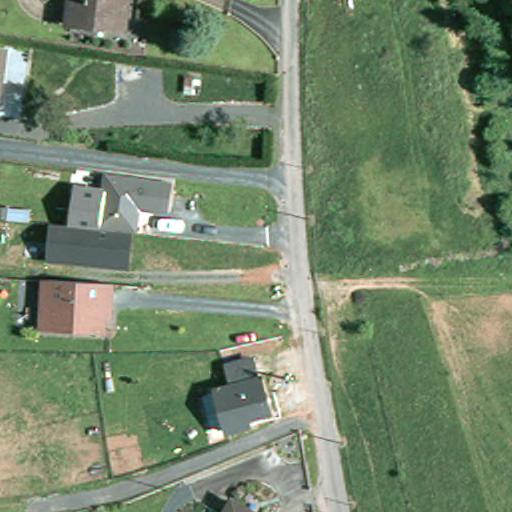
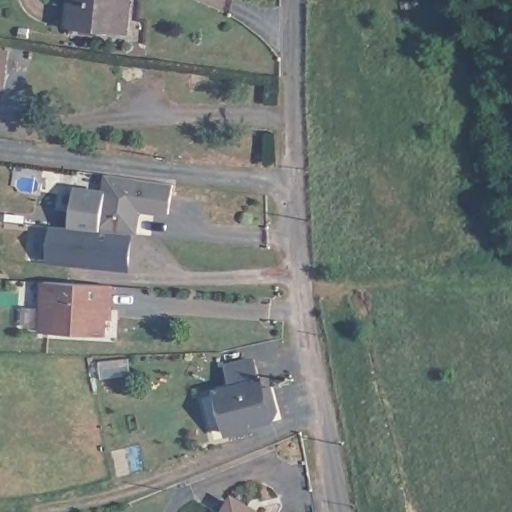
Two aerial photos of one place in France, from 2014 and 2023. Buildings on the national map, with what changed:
unchanged [(124,32),(71,24),(74,0),(129,0),(124,32)]
unchanged [(2,100),(1,108),(0,108),(0,52),(10,54),(2,100)]
unchanged [(102,170),(173,178),(170,218),(143,216),(139,234),(95,226),(102,170)]
unchanged [(98,203),(95,226),(132,232),(128,268),(46,257),(49,220),(68,223),(74,185),(100,186),(98,203)]
unchanged [(114,280),(110,336),(38,329),(41,276),(114,280)]
unchanged [(265,372),(274,422),(225,436),(212,388),(265,372)]
unchanged [(261,512),(229,512),(240,497),(261,512)]

